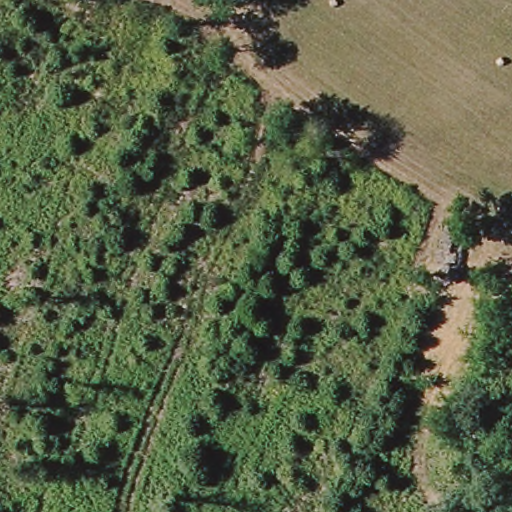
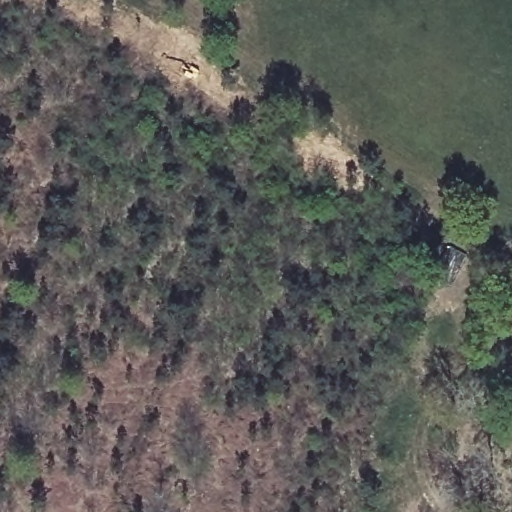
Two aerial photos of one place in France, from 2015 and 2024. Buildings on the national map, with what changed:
[]

